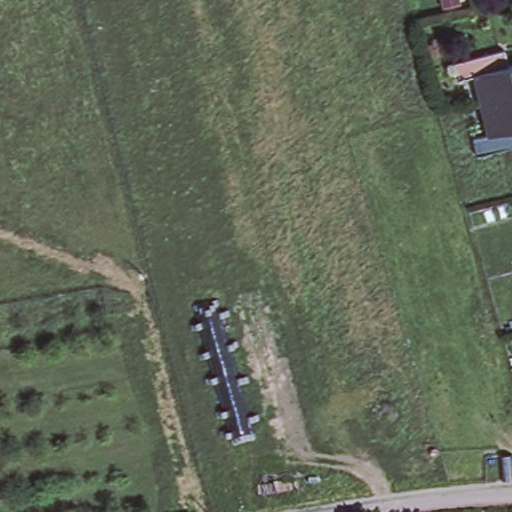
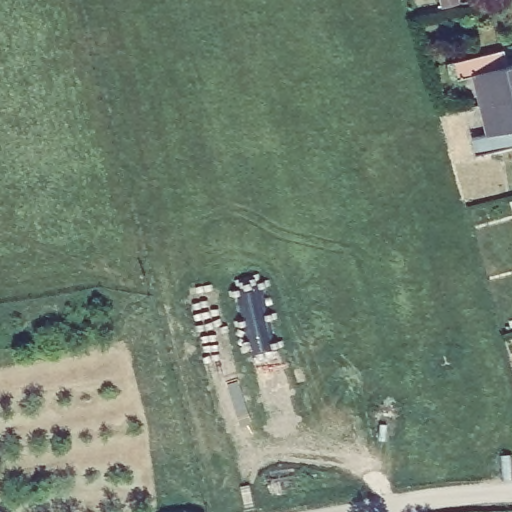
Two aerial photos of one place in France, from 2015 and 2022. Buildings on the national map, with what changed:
unchanged [(459,79),(455,63),(505,51),(508,68),(512,67),(512,98),(481,106),(474,76),(459,79)]
unchanged [(512,147),(477,155),(473,139),(488,135),(481,106),(512,98),(512,147)]

